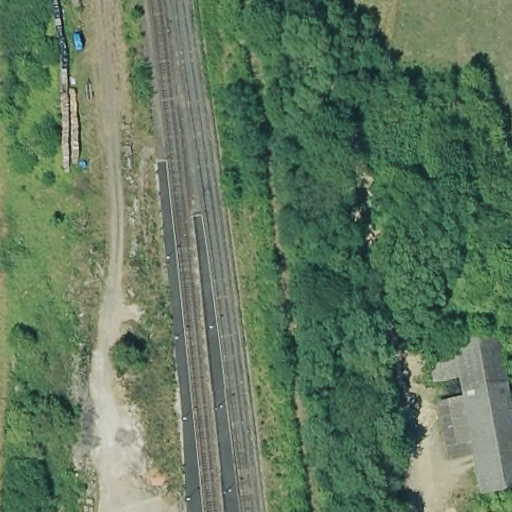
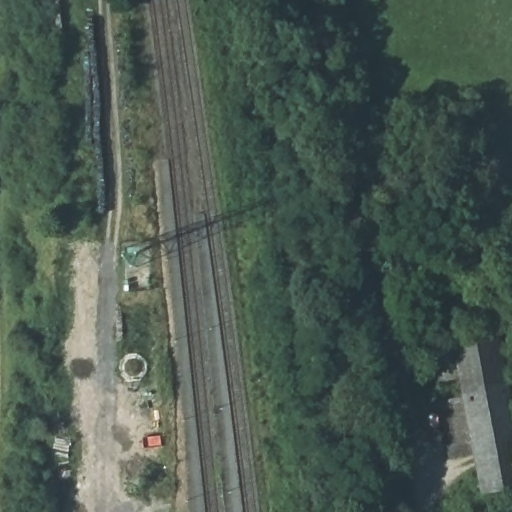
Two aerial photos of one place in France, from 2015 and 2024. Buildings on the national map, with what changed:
unchanged [(512,491),(476,496),(466,455),(444,459),(435,401),(458,396),(453,375),(428,381),(424,353),(495,335),(512,416),(512,491)]

